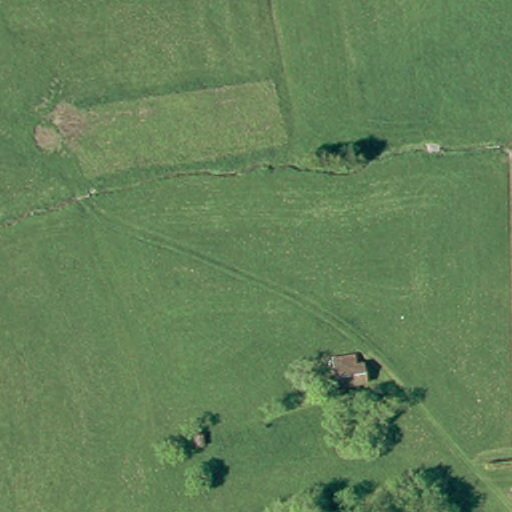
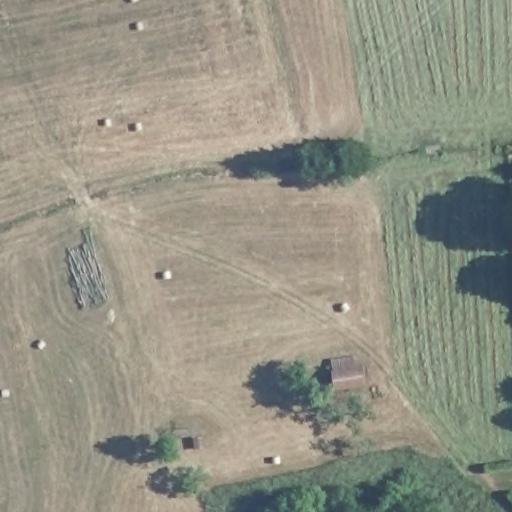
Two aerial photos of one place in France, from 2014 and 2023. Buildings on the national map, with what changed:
unchanged [(364,388),(331,390),(329,372),(362,370),(364,388)]

